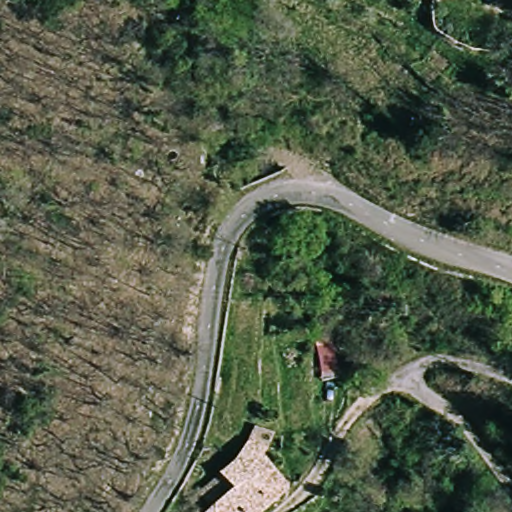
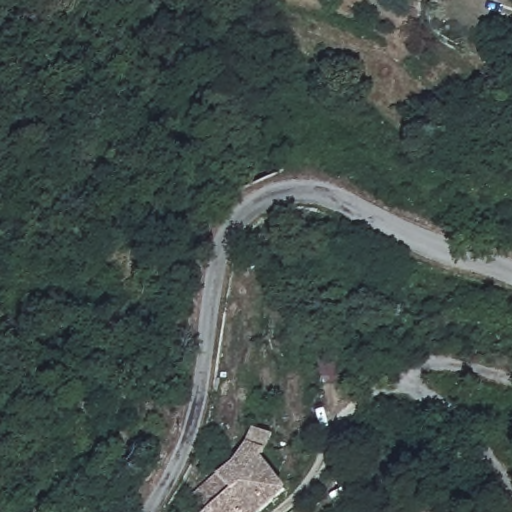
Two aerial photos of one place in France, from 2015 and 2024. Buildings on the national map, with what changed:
unchanged [(245,441),(254,426),(273,431),(261,458),(279,477),(288,487),(259,512),(203,512),(207,509),(193,491),(205,480),(235,454),(245,441)]

